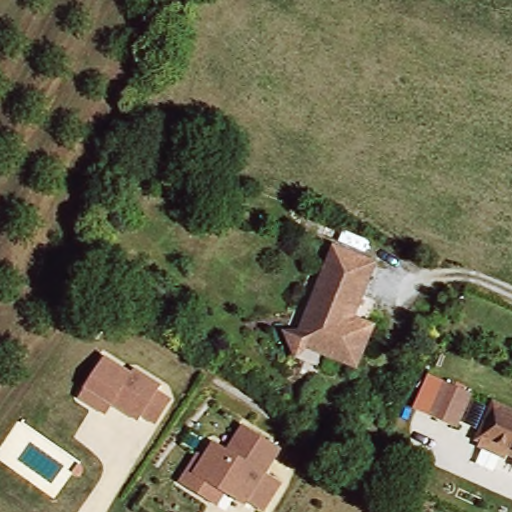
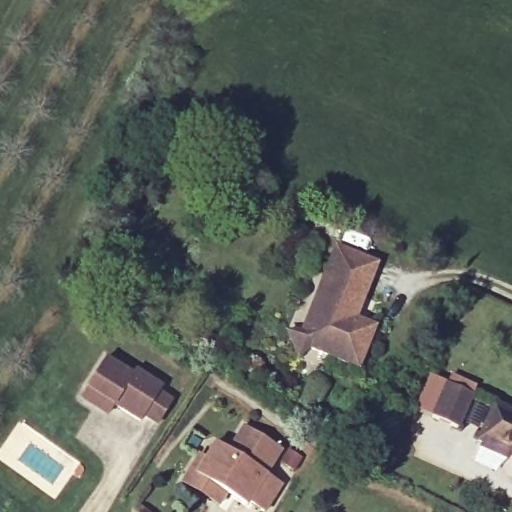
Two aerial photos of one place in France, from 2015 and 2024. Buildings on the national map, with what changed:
unchanged [(301,346),(297,352),(285,345),(290,331),(300,332),(339,250),(379,269),(355,321),(375,330),(357,372),(301,346)]
unchanged [(107,356),(137,371),(140,367),(164,382),(159,394),(175,403),(163,426),(114,406),(108,418),(80,403),(107,356)]
unchanged [(453,431),(435,420),(451,390),(469,399),(453,431)]
unchanged [(501,401),(512,408),(512,458),(481,440),(501,401)]
unchanged [(182,485),(199,458),(207,462),(215,446),(230,455),(245,429),(284,453),(268,477),(282,487),(266,512),(259,512),(248,506),(246,509),(226,496),(217,508),(182,485)]

